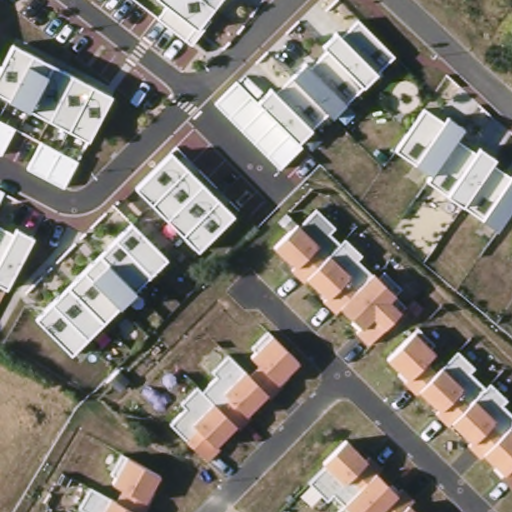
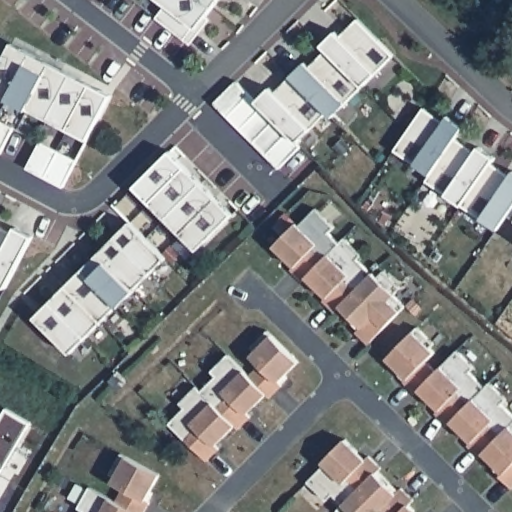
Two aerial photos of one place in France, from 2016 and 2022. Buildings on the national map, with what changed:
unchanged [(157,19),(167,6),(160,0),(216,0),(205,16),(210,20),(190,45),(157,19)]
unchanged [(214,104),(237,82),(258,102),(270,90),(273,92),(305,63),(308,67),(326,50),(321,45),(337,31),(342,35),(359,20),(393,56),(376,73),(331,117),(326,112),(311,129),(296,142),(301,147),(278,169),(214,104)]
unchanged [(87,140),(0,94),(0,64),(12,42),(112,94),(87,140)]
unchanged [(425,182),(430,173),(395,150),(422,109),(441,122),(445,116),(461,128),(453,139),(476,152),(478,148),(493,158),(490,163),(511,176),(512,174),(512,206),(497,230),(425,182)]
unchanged [(0,120),(14,127),(0,155),(0,154),(0,120)]
unchanged [(40,140),(77,159),(62,188),(25,169),(40,140)]
unchanged [(196,250),(133,187),(170,151),(232,213),(196,250)]
unchanged [(332,230),(327,235),(336,242),(340,238),(360,258),(356,263),(393,297),(386,307),(396,314),(365,342),(274,243),(312,209),(332,230)]
unchanged [(70,353),(34,317),(132,222),(166,258),(70,353)]
unchanged [(14,226),(31,235),(6,287),(0,284),(0,227),(11,233),(14,226)]
unchanged [(431,353),(426,361),(435,373),(453,353),(471,369),(467,373),(480,390),(485,385),(505,400),(500,406),(512,418),(512,425),(505,430),(512,436),(512,492),(495,477),(500,472),(386,358),(412,333),(431,353)]
unchanged [(275,385),(214,448),(216,451),(201,464),(181,443),(161,421),(224,356),(245,376),(256,365),(245,357),(265,335),(297,366),(275,385)]
new [(31,423),(0,477),(0,421),(7,409),(31,423)]
unchanged [(355,487),(347,479),(340,486),(316,462),(340,439),(413,512),(349,512),(341,503),(355,487)]
unchanged [(89,488),(111,502),(120,490),(107,484),(122,459),(156,475),(136,512),(76,512),(75,512),(89,488)]

